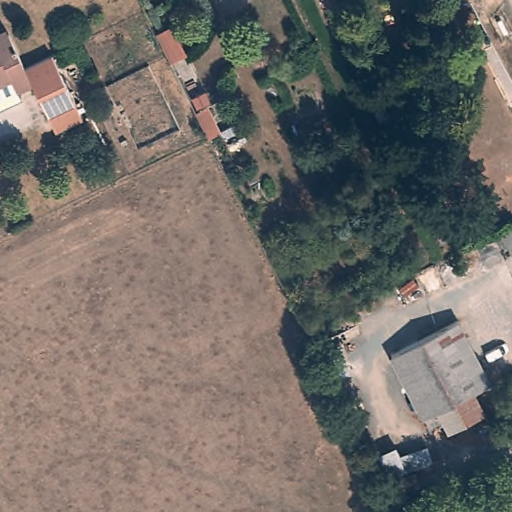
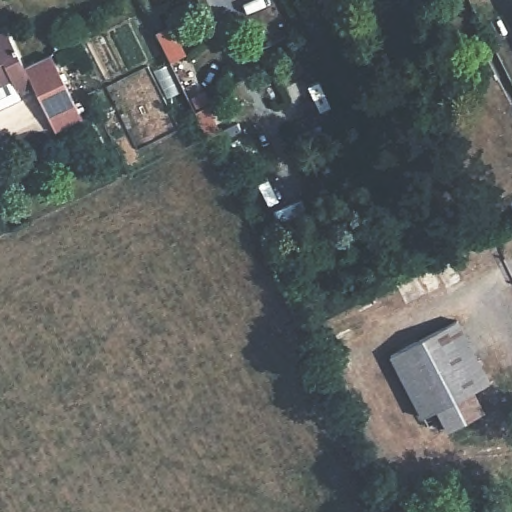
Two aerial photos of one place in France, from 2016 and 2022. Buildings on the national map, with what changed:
unchanged [(336,0),(324,5),(322,0),(336,0)]
unchanged [(171,25),(185,54),(169,61),(155,32),(171,25)]
unchanged [(55,136),(49,123),(32,89),(17,96),(13,89),(0,95),(0,35),(5,32),(8,39),(25,73),(52,60),(76,110),(82,123),(55,136)]
unchanged [(207,105),(220,131),(207,138),(194,111),(207,105)]
unchanged [(432,225),(444,220),(453,236),(441,243),(432,225)]
unchanged [(423,421),(422,422),(390,360),(457,325),(489,387),(472,396),(483,416),(447,435),(442,424),(428,431),(423,421)]

